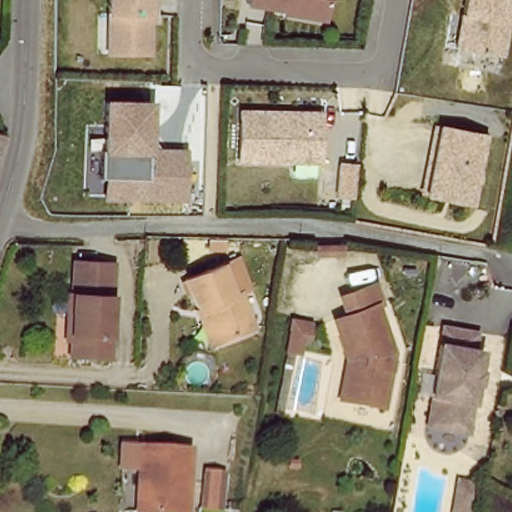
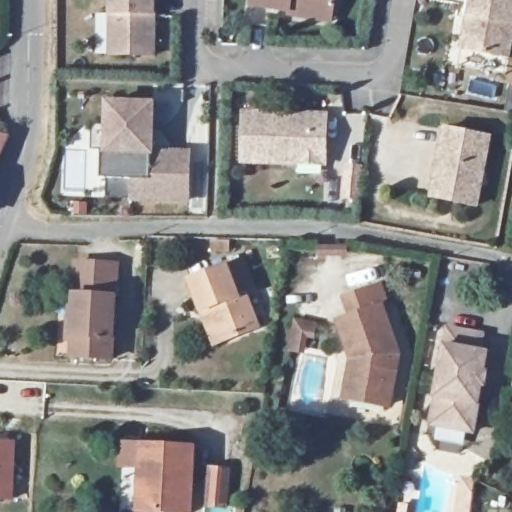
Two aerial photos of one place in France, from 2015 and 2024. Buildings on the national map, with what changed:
unchanged [(155,61),(106,60),(106,0),(156,0),(155,61)]
unchanged [(290,17),(289,17),(289,14),(251,7),(252,0),(335,0),(332,17),(331,24),(290,17)]
unchanged [(468,19),(472,0),(512,0),(512,36),(508,61),(469,54),(461,52),(467,19),(468,19)]
unchanged [(156,150),(193,151),(191,205),(106,202),(106,180),(102,180),(103,151),(106,151),(106,102),(158,102),(156,150)]
unchanged [(242,164),(243,115),(326,117),(325,155),(325,167),(296,166),(242,164)]
unchanged [(436,177),(445,131),(490,140),(476,209),(454,204),(431,200),(436,177)]
unchanged [(0,138),(3,139),(0,145),(0,138)]
unchanged [(361,170),(358,209),(341,206),(345,167),(361,170)]
unchanged [(111,357),(68,356),(70,298),(72,262),(88,263),(115,265),(111,357)]
unchanged [(208,313),(203,317),(190,280),(231,266),(243,303),(248,301),(258,331),(220,345),(208,313)]
unchanged [(357,361),(344,332),(356,327),(350,307),(384,295),(391,313),(385,317),(401,363),(394,416),(351,408),(357,361)]
unchanged [(438,436),(439,428),(455,340),(490,346),(487,363),(494,365),(481,436),(480,443),(438,436)]
new [(13,502),(0,501),(0,440),(15,441),(13,502)]
unchanged [(143,443),(193,455),(182,512),(173,512),(144,507),(134,506),(140,470),(143,443)]
unchanged [(213,474),(228,477),(224,512),(207,508),(213,474)]
unchanged [(474,482),(470,512),(454,512),(460,479),(474,482)]

